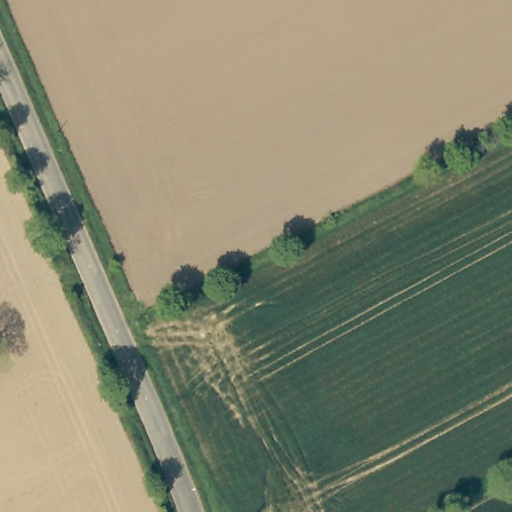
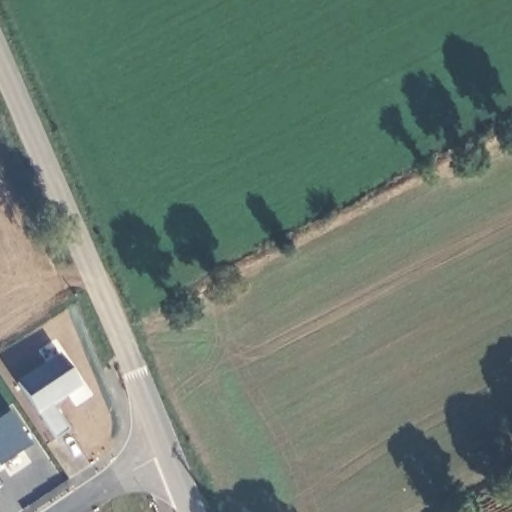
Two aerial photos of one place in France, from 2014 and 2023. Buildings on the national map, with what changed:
new [(0,467),(0,417),(7,411),(29,445),(0,467)]

